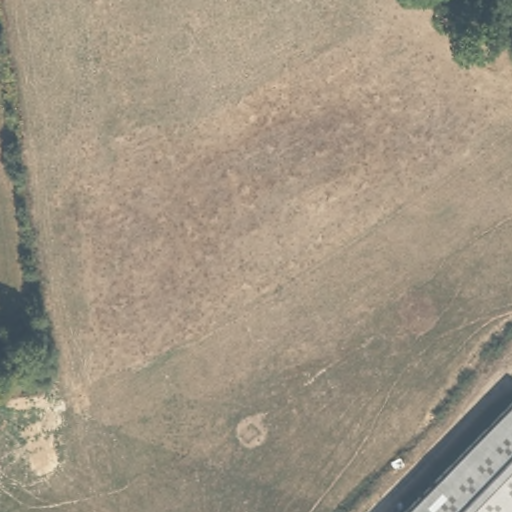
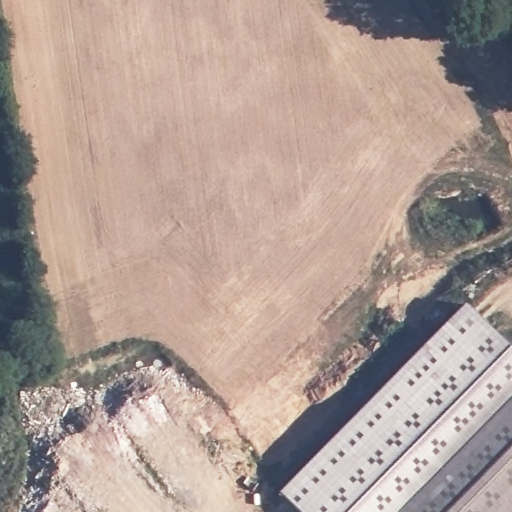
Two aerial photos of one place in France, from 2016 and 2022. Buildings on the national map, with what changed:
new [(512,349),(512,403),(404,512),(293,512),(276,496),(467,304),(512,349)]
unchanged [(512,403),(512,512),(404,512),(512,403)]

